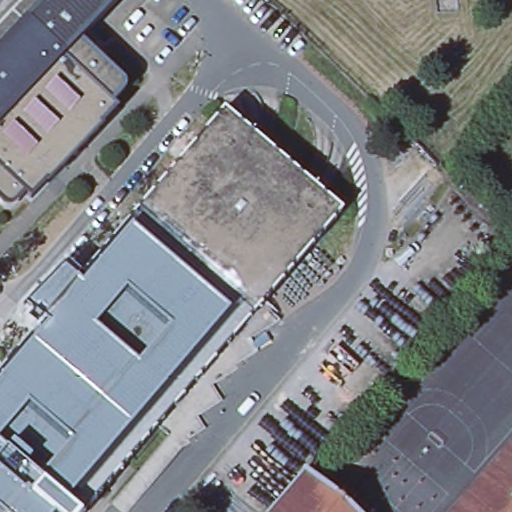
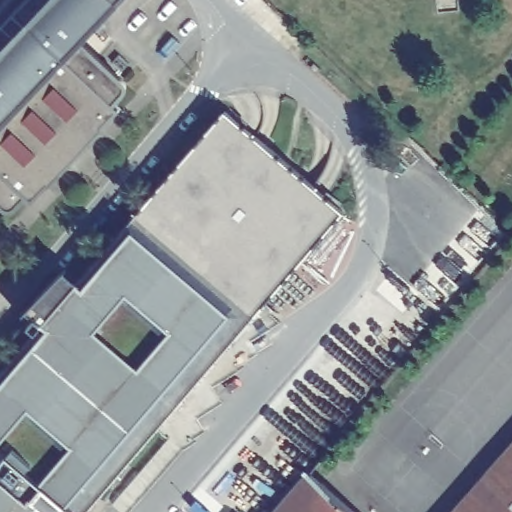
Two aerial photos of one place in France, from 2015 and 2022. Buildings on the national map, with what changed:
unchanged [(82,43),(125,83),(127,88),(127,94),(115,106),(120,112),(104,128),(107,130),(52,187),(50,185),(34,201),(29,197),(16,211),(9,211),(0,203),(0,33),(31,0),(123,0),(82,43)]
unchanged [(88,512),(0,512),(0,371),(226,107),(346,210),(88,512)]
unchanged [(512,148),(512,162),(506,154),(512,148)]
unchanged [(512,512),(463,512),(512,456),(512,512)]
unchanged [(281,512),(316,472),(362,512),(281,512)]

